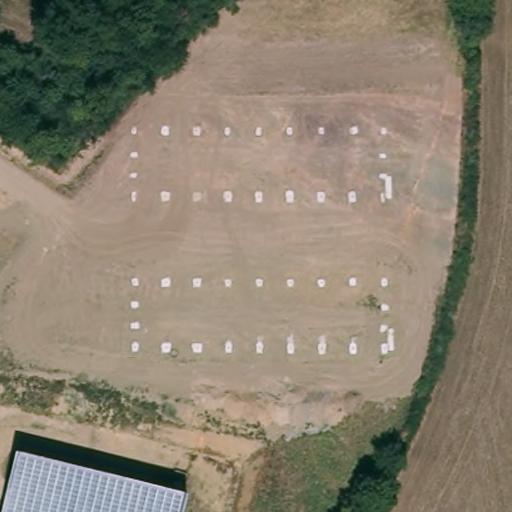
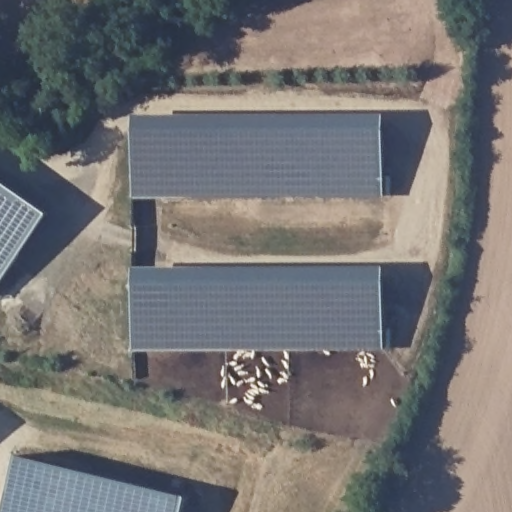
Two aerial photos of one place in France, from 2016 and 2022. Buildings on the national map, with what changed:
new [(374,112),(376,187),(126,191),(125,116),(374,112)]
new [(0,281),(0,181),(47,214),(0,281)]
new [(387,256),(388,348),(129,353),(127,261),(387,256)]
unchanged [(183,512),(2,512),(18,456),(187,498),(183,512)]

